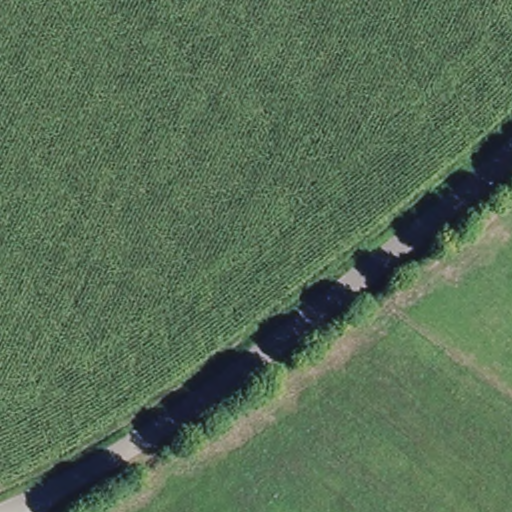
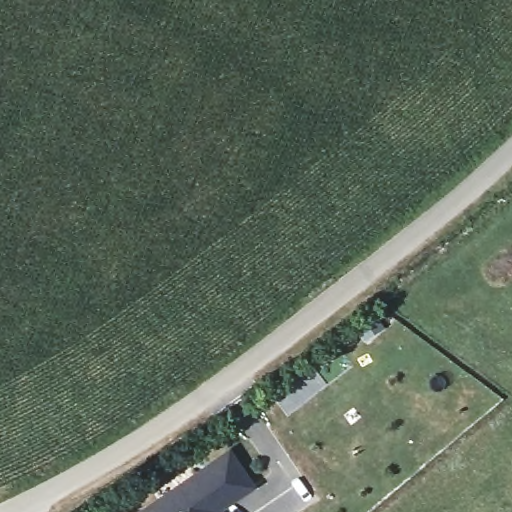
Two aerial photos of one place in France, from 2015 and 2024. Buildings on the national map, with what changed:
new [(219,512),(139,512),(229,450),(252,487),(218,511),(219,512)]

